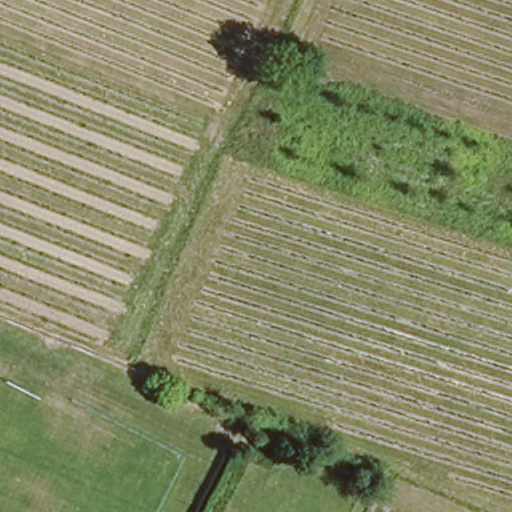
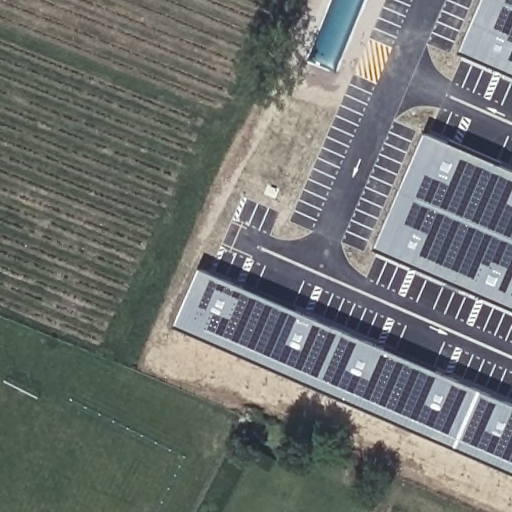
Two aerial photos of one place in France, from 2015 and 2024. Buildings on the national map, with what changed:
demolished [(252,6),(255,0),(274,0),(267,13),(252,6)]
new [(512,0),(512,77),(464,56),(489,0),(512,0)]
new [(429,135),(512,171),(512,311),(378,252),(429,135)]
new [(205,271),(512,405),(512,475),(179,330),(205,271)]

